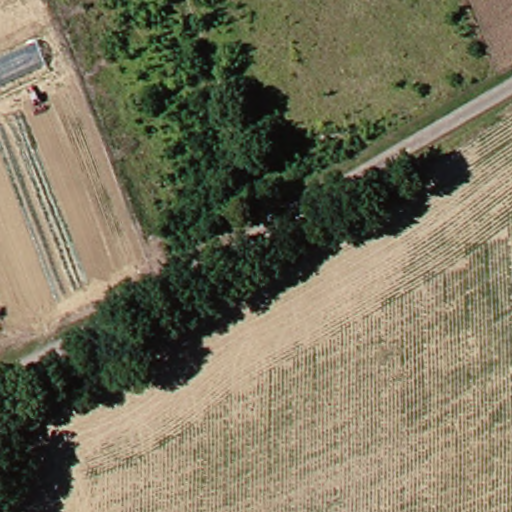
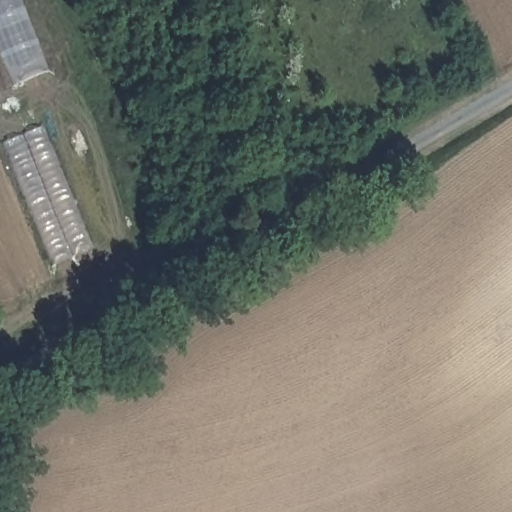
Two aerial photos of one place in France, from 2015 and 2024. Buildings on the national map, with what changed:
new [(0,49),(0,0),(23,0),(50,72),(15,87),(0,49)]
new [(93,250),(52,267),(1,143),(42,127),(93,250)]

